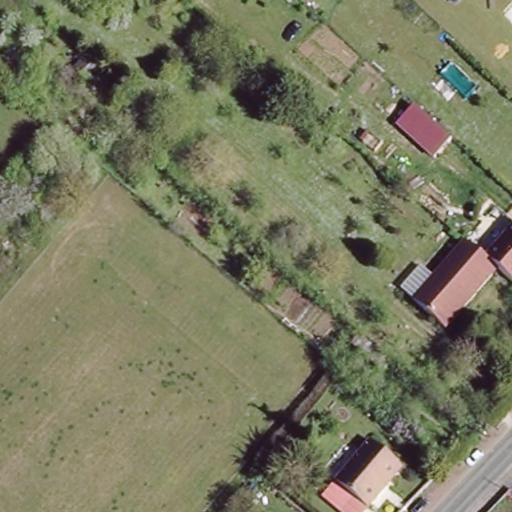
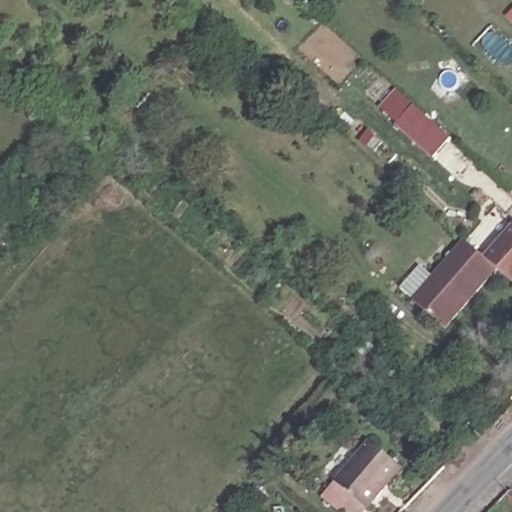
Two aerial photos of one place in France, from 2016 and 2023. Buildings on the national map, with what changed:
unchanged [(66,77),(95,47),(114,66),(90,90),(66,77)]
unchanged [(415,105),(452,139),(433,160),(395,126),(415,105)]
unchanged [(512,287),(496,272),(484,262),(512,230),(512,287)]
unchanged [(464,244),(484,262),(496,272),(471,301),(448,327),(445,330),(413,302),(400,291),(403,287),(420,269),(432,280),(439,272),(464,244)]
unchanged [(398,467),(380,491),(382,493),(368,512),(367,512),(335,486),(370,443),(398,467)]

